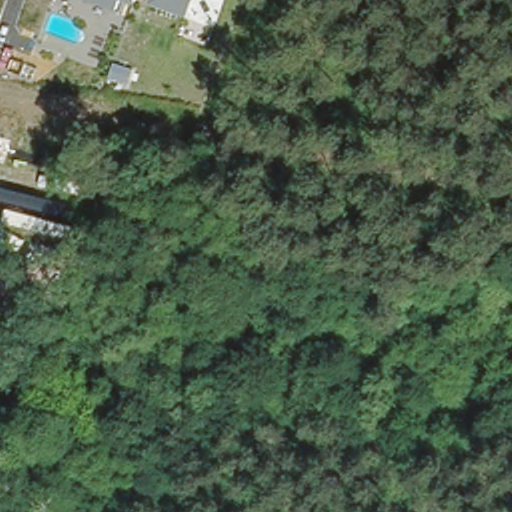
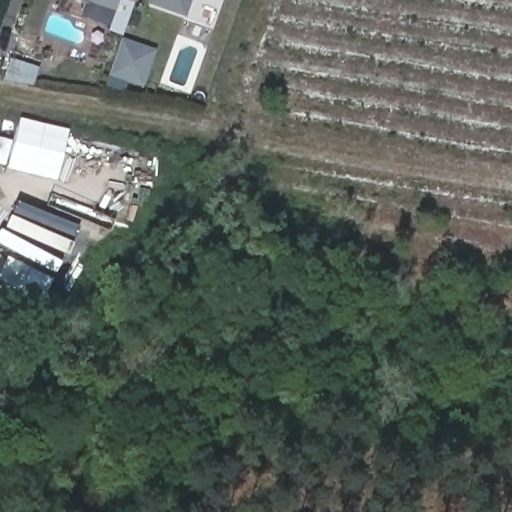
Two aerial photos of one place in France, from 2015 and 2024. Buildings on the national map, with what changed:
unchanged [(107,9),(102,21),(82,13),(87,1),(84,0),(121,0),(117,12),(107,9)]
unchanged [(127,0),(139,0),(137,4),(127,0)]
unchanged [(148,6),(150,0),(192,0),(187,17),(148,6)]
new [(157,50),(142,87),(107,75),(122,39),(157,50)]
new [(4,80),(9,59),(37,67),(32,87),(4,80)]
new [(7,169),(19,119),(68,130),(56,181),(7,169)]

